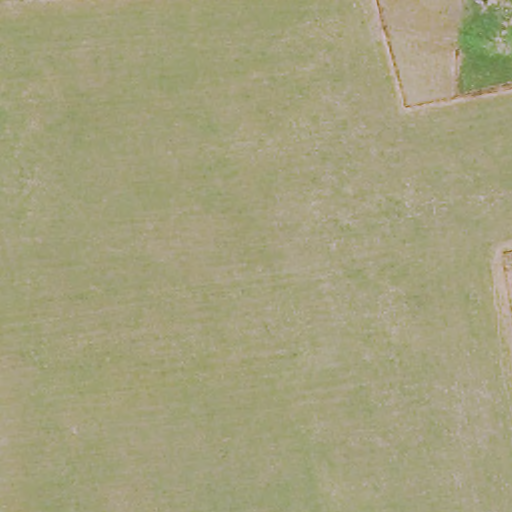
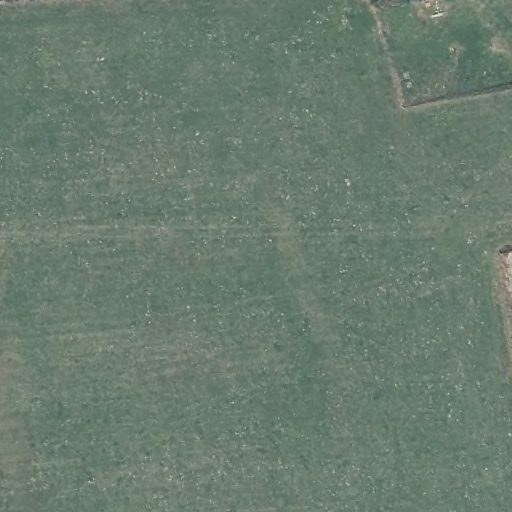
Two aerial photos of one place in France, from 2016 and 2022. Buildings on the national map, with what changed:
[]

